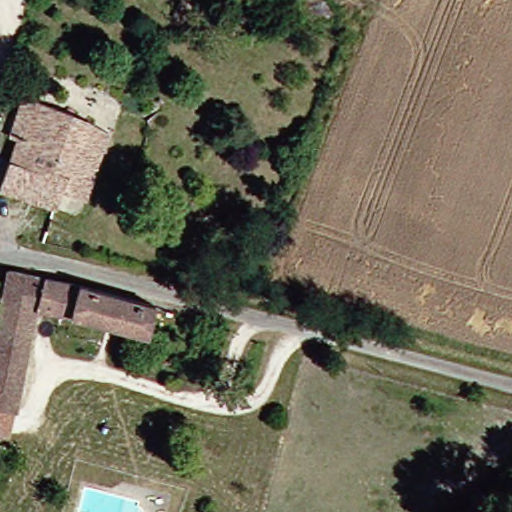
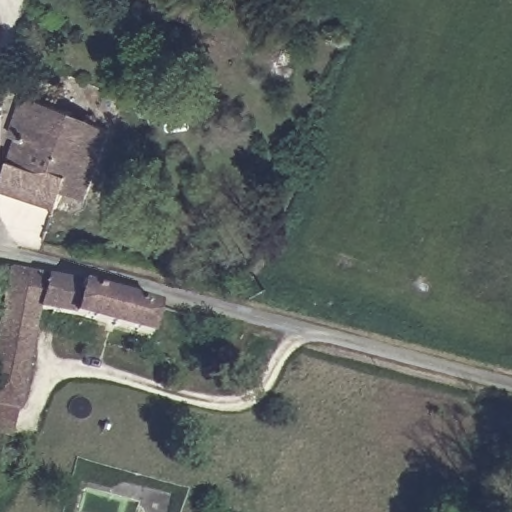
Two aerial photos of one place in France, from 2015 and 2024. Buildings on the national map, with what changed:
unchanged [(115,128),(93,198),(70,190),(63,211),(10,193),(27,140),(19,138),(32,102),(115,128)]
unchanged [(14,406),(0,403),(0,334),(15,268),(62,276),(109,286),(157,298),(150,329),(52,309),(36,373),(24,370),(14,406)]

